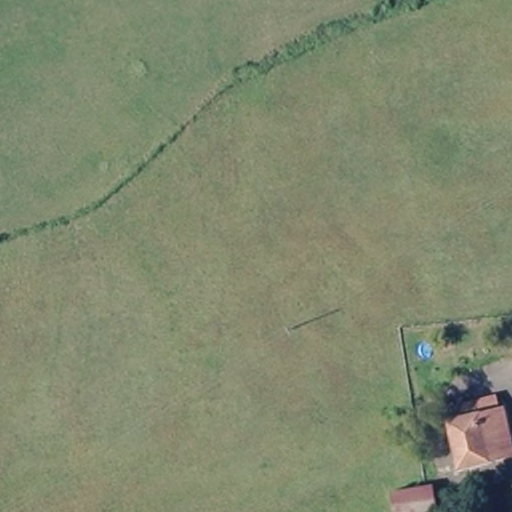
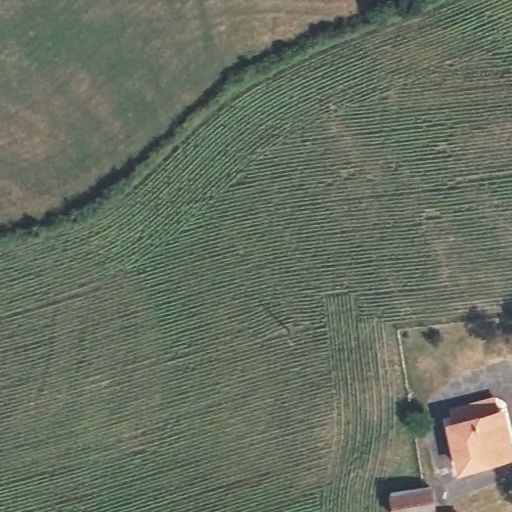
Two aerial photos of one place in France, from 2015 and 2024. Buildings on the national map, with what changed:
unchanged [(512,461),(462,473),(452,431),(457,430),(453,411),(496,402),(498,418),(505,417),(512,448),(512,461)]
unchanged [(395,512),(390,496),(434,488),(438,512),(395,512)]

